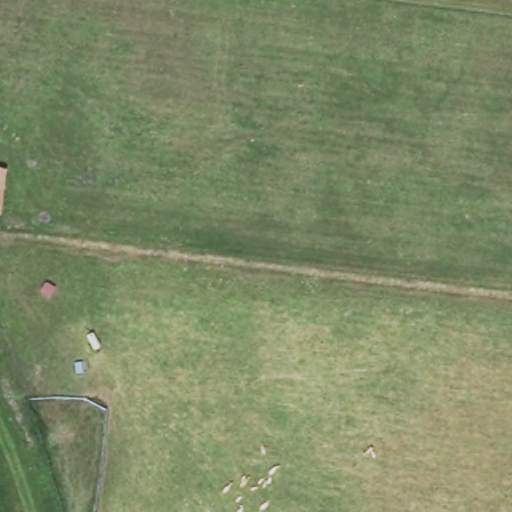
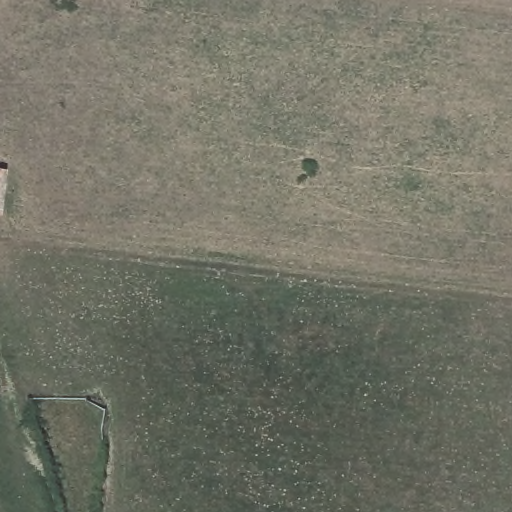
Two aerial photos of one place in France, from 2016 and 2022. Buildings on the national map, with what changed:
unchanged [(3,216),(0,216),(0,168),(9,168),(3,216)]

